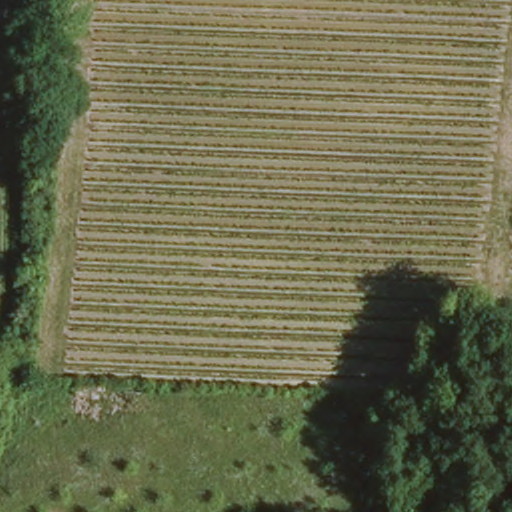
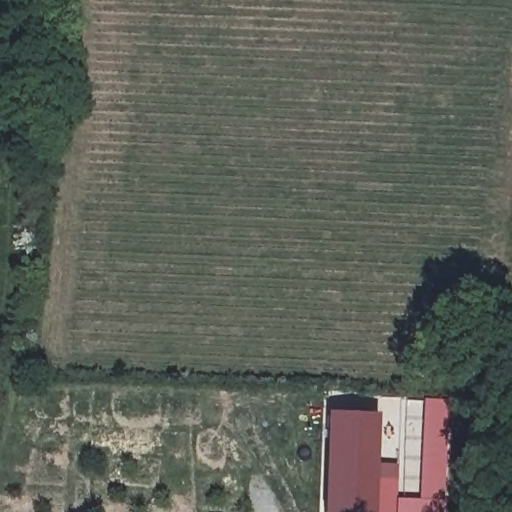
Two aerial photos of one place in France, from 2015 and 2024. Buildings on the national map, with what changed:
new [(379,462),(399,464),(397,498),(421,498),(425,397),(449,399),(445,512),(377,512),(379,462)]
new [(377,512),(324,512),(327,412),(381,415),(377,512)]

